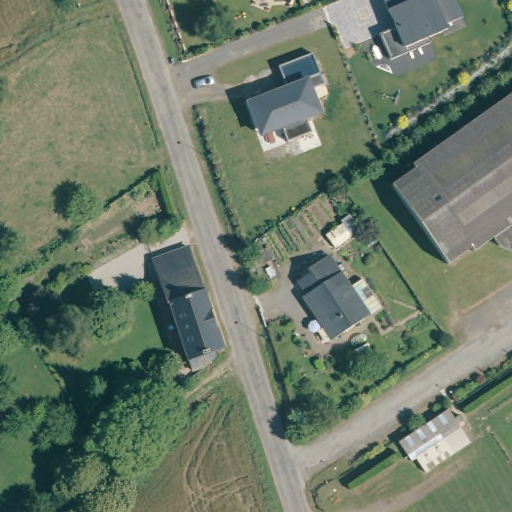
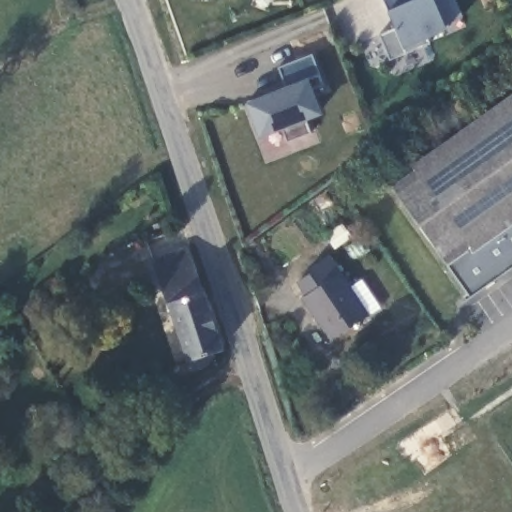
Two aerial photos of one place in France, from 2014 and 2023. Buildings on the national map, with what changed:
unchanged [(464,17),(446,25),(447,29),(425,38),(427,43),(389,60),(378,35),(395,29),(384,0),(457,0),(464,17)]
unchanged [(285,87),(278,66),(310,54),(323,83),(311,87),(322,115),(305,122),(308,131),(285,140),(281,130),(260,138),(246,103),(285,87)]
unchanged [(413,162),(410,158),(512,90),(512,249),(492,240),(486,235),(469,247),(463,243),(440,258),(387,180),(413,162)]
new [(447,265),(448,265),(443,256),(463,243),(469,247),(486,235),(492,240),(512,249),(512,267),(470,296),(447,265)]
unchanged [(219,335),(215,340),(211,340),(188,359),(183,347),(189,345),(161,260),(190,250),(216,324),(220,329),(219,335)]
unchanged [(368,309),(334,333),(300,290),(307,285),(300,276),(309,269),(305,263),(327,250),(368,309)]
unchanged [(401,437),(453,404),(463,415),(457,419),(469,441),(456,447),(425,470),(401,437)]

